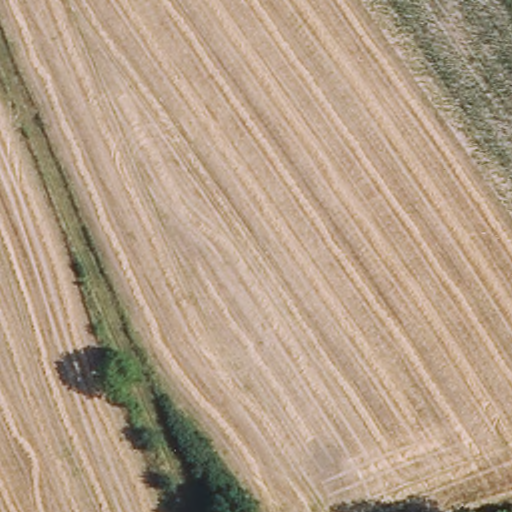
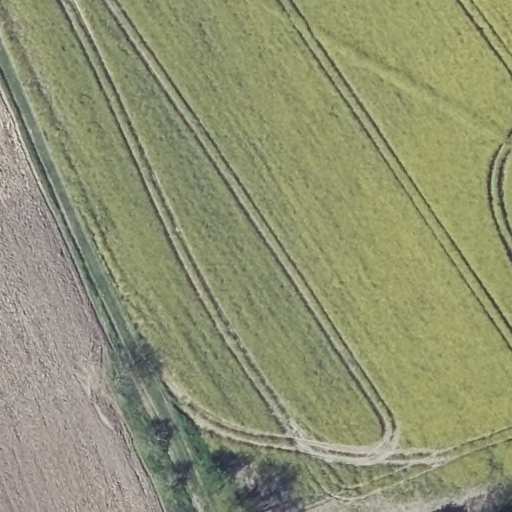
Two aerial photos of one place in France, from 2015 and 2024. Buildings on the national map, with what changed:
[]

